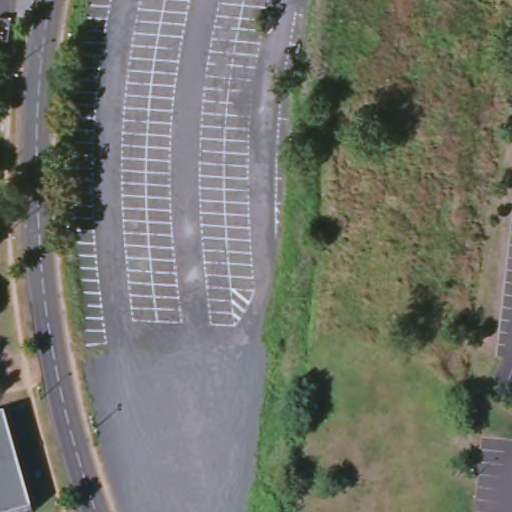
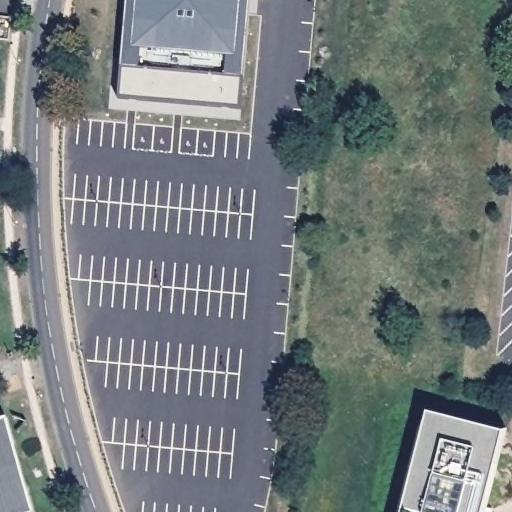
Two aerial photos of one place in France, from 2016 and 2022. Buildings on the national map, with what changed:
new [(123,69),(139,70),(140,51),(135,50),(139,0),(241,0),(237,54),(232,53),(231,75),(247,76),(244,110),(120,103),(123,69)]
new [(128,0),(139,0),(135,50),(140,51),(139,70),(123,69),(128,0)]
new [(247,76),(231,75),(232,53),(237,54),(241,0),(253,0),(247,76)]
new [(506,434),(488,512),(402,512),(427,413),(506,434)]
unchanged [(0,512),(0,420),(4,418),(28,512),(0,512)]

